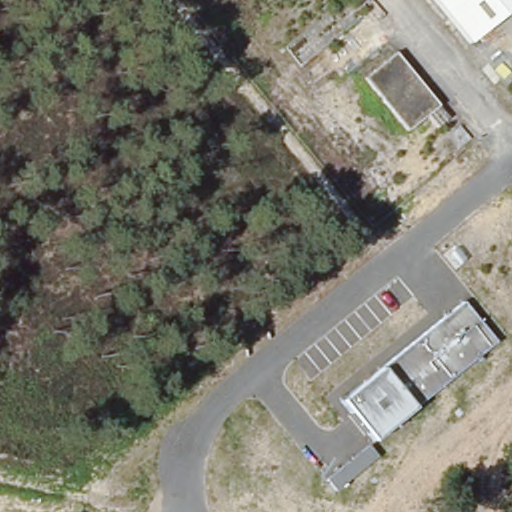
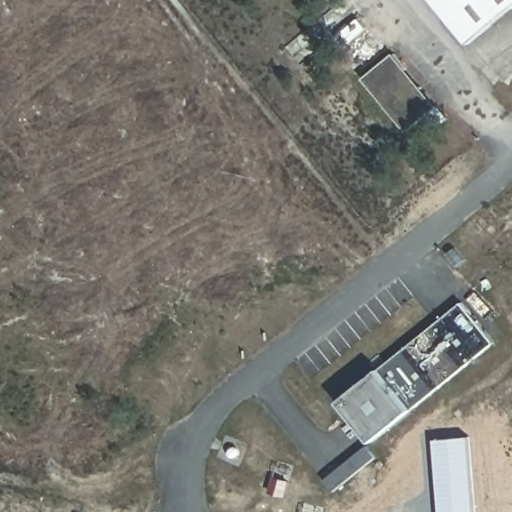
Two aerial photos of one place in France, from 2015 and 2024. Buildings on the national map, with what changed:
unchanged [(470,46),(432,0),(512,0),(512,11),(470,46)]
unchanged [(447,118),(418,140),(364,75),(395,52),(447,118)]
unchanged [(375,443),(341,401),(381,370),(463,303),(495,343),(415,410),(375,443)]
new [(477,512),(442,512),(437,439),(470,436),(477,512)]
unchanged [(338,491),(328,480),(369,446),(380,457),(338,491)]

